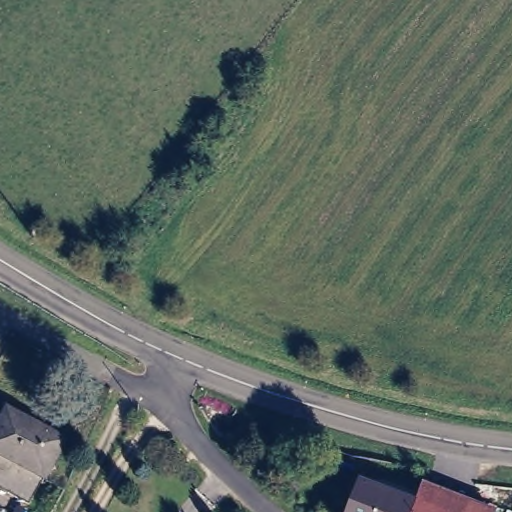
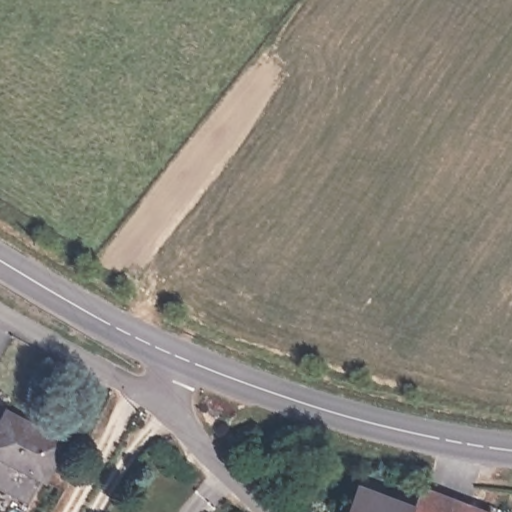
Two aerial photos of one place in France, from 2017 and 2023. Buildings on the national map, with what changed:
unchanged [(34,502),(0,484),(0,418),(8,402),(70,434),(34,502)]
unchanged [(410,494),(420,478),(500,508),(499,512),(344,512),(360,475),(410,494)]

